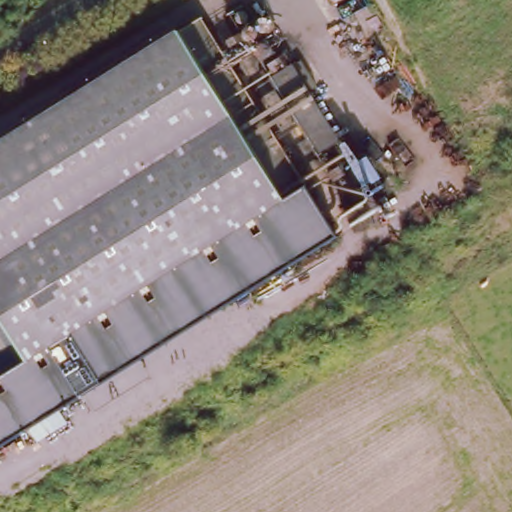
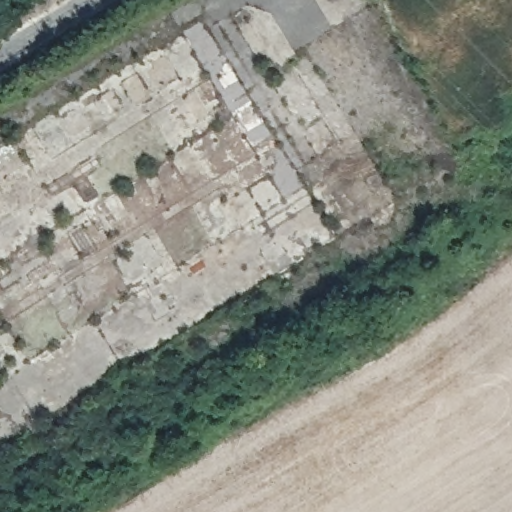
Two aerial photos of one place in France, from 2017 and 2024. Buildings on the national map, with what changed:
demolished [(0,370),(0,316),(29,363),(282,209),(175,34),(202,20),(309,189),(338,237),(0,448),(0,382),(5,378),(0,370)]
demolished [(0,144),(175,34),(282,209),(29,363),(0,316),(0,144)]
demolished [(319,154),(270,76),(295,64),(340,140),(319,154)]

